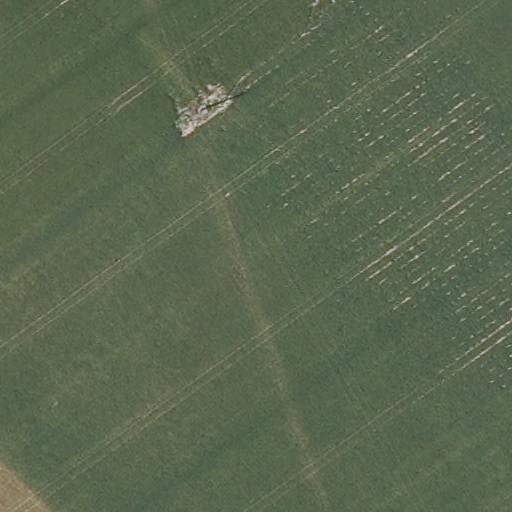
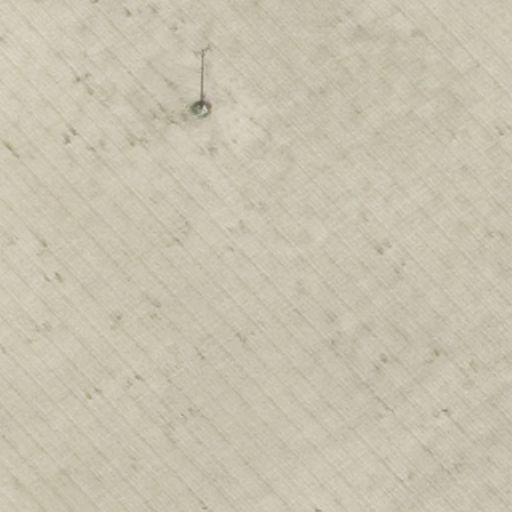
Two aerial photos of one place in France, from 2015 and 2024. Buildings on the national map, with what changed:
[]

